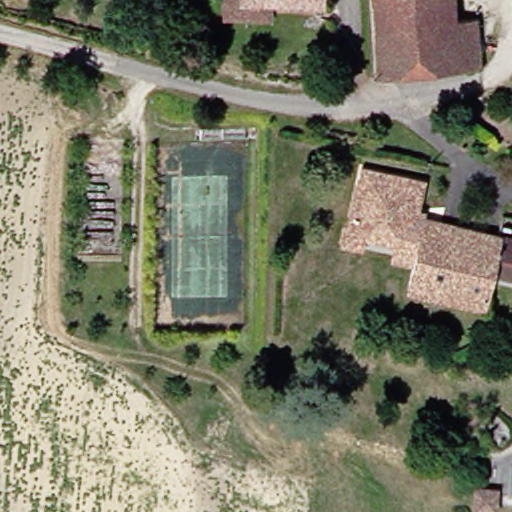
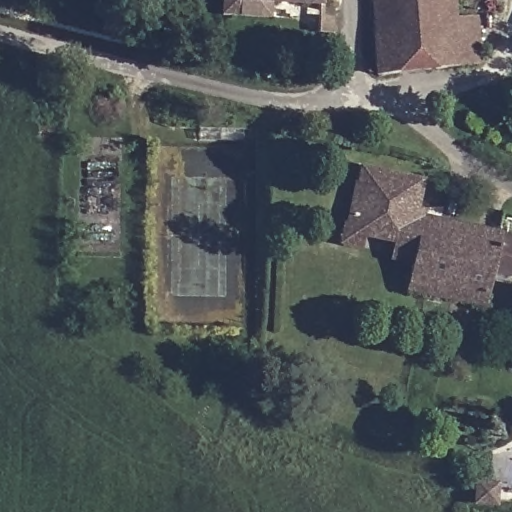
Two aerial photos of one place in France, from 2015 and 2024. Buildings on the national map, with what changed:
unchanged [(463,0),(466,26),(488,26),(489,65),(382,70),(379,0),(463,0)]
unchanged [(413,266),(390,262),(393,246),(365,240),(363,252),(339,246),(356,164),(427,179),(421,210),(426,212),(426,217),(422,216),(413,266)]
unchanged [(491,279),(486,309),(408,296),(422,216),(512,230),(512,282),(491,279)]
unchanged [(481,477),(502,480),(500,500),(479,498),(481,477)]

